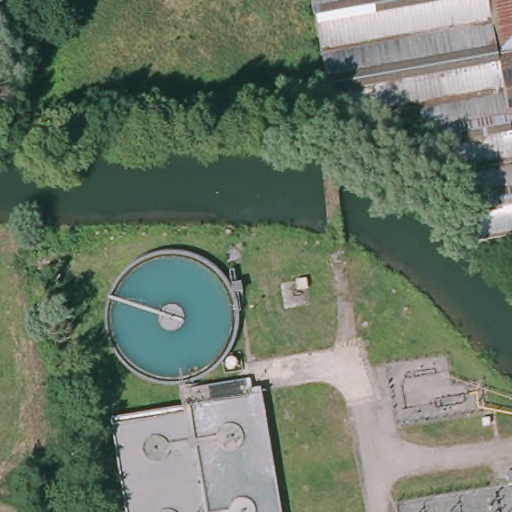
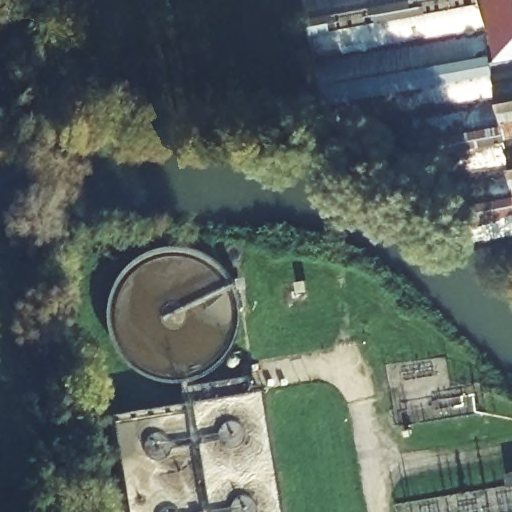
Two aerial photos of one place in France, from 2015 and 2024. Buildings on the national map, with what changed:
unchanged [(452,176),(427,180),(412,107),(331,121),(331,118),(309,0),(512,0),(512,239),(490,242),(466,246),(460,216),(452,176)]

